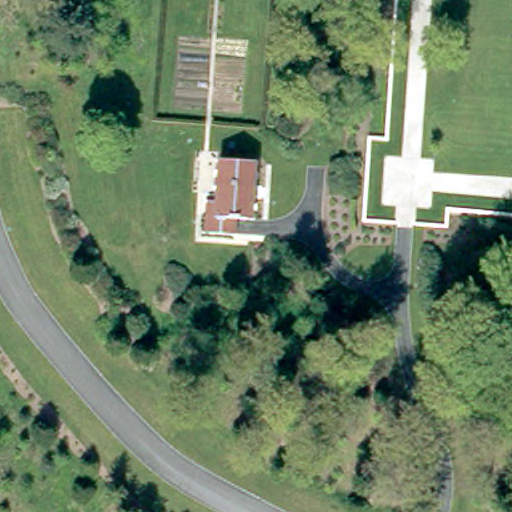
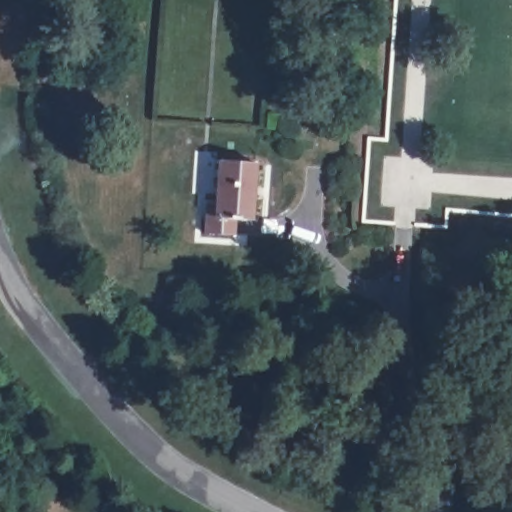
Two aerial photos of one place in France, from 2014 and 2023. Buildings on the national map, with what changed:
unchanged [(252,191),(252,193),(252,195),(215,192),(215,190),(215,188),(217,155),(254,157),(252,191)]
unchanged [(252,195),(250,221),(235,219),(233,236),(198,234),(200,198),(211,198),(212,191),(212,189),(212,187),(215,188),(215,190),(215,192),(252,195)]

